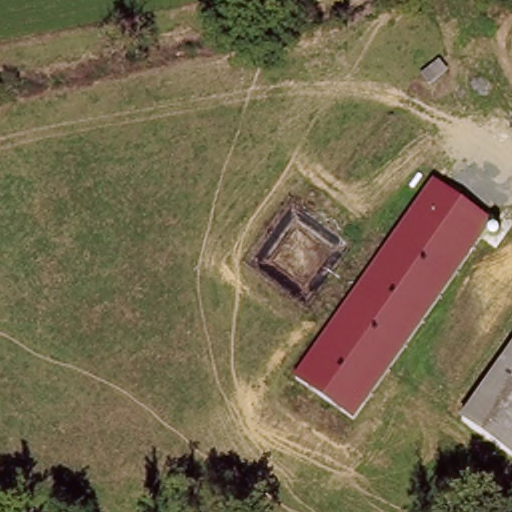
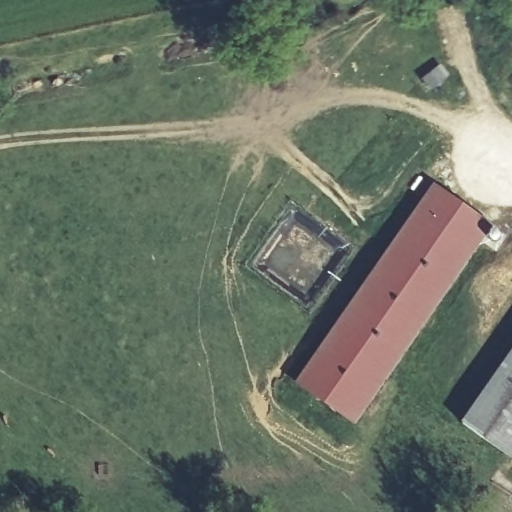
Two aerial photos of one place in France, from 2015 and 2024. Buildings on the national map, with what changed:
unchanged [(489,227),(354,429),(296,389),(429,187),(489,227)]
unchanged [(468,419),(512,352),(512,449),(468,419)]

